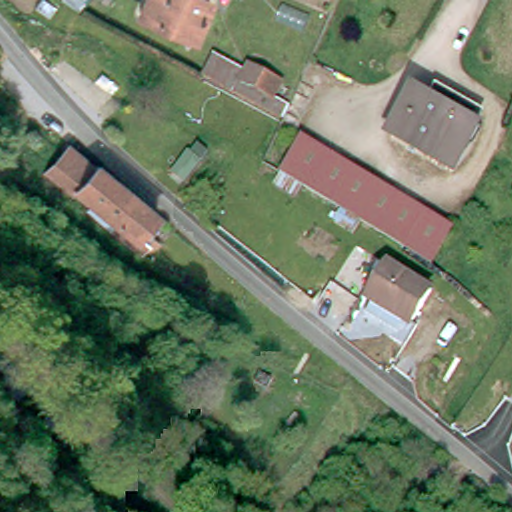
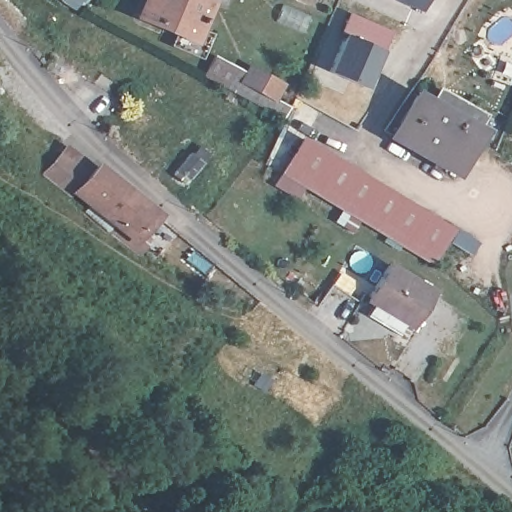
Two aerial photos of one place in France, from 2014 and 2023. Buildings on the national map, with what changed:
unchanged [(100,0),(111,0),(107,5),(100,0)]
unchanged [(207,0),(212,2),(196,41),(137,16),(144,0),(207,0)]
new [(397,0),(428,0),(423,11),(397,0)]
new [(390,30),(383,50),(374,77),(370,75),(365,86),(328,72),(343,34),(340,34),(347,12),(390,30)]
unchanged [(285,118),(236,92),(208,77),(216,56),(247,71),(250,66),(285,84),(277,100),(290,107),(285,118)]
unchanged [(416,97),(446,115),(455,97),(484,114),(475,131),(454,169),(394,135),(416,97)]
unchanged [(55,135),(37,119),(45,110),(62,126),(55,135)]
unchanged [(463,225),(442,259),(292,168),(313,134),(463,225)]
unchanged [(88,205),(47,175),(70,146),(95,165),(97,164),(158,212),(157,214),(140,239),(148,246),(141,258),(84,211),(88,205)]
unchanged [(285,180),(290,169),(293,170),(312,182),(306,193),(285,180)]
unchanged [(343,215),(350,205),(367,215),(370,217),(364,228),(343,215)]
unchanged [(381,296),(388,285),(402,262),(444,287),(429,312),(423,321),(415,316),(406,329),(376,311),(385,298),(381,296)]

